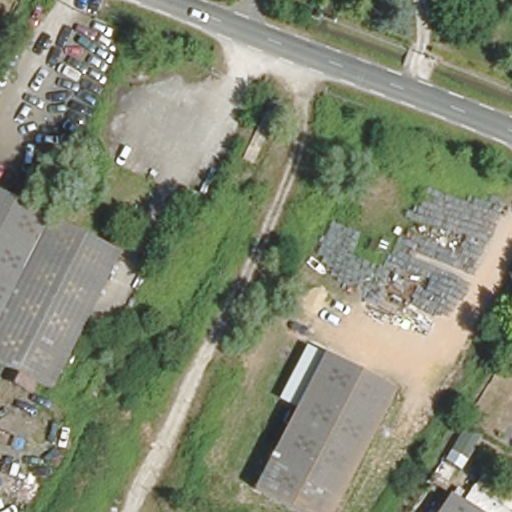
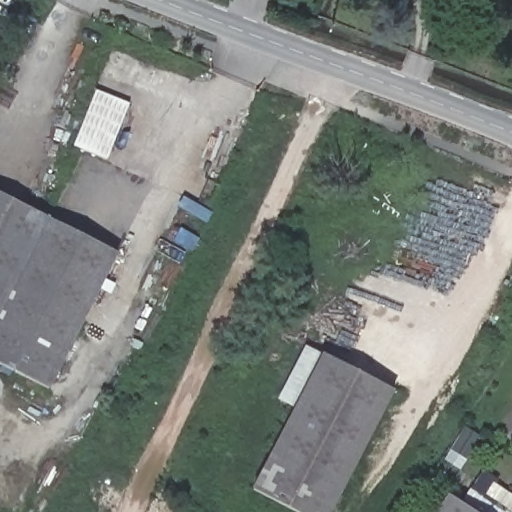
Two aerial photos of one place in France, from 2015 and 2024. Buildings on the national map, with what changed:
unchanged [(140,39),(134,54),(117,48),(124,32),(142,37),(140,39)]
new [(96,91),(130,104),(107,159),(74,146),(96,91)]
unchanged [(45,219),(0,312),(0,197),(45,219)]
unchanged [(115,252),(49,388),(0,365),(0,312),(45,219),(115,252)]
unchanged [(402,398),(328,512),(299,512),(251,482),(333,354),(402,398)]
unchanged [(468,480),(512,509),(512,512),(461,512),(451,506),(468,480)]
unchanged [(451,506),(461,512),(433,512),(442,499),(451,506)]

